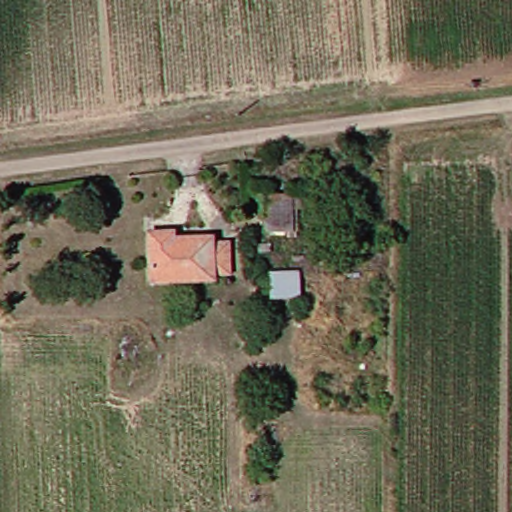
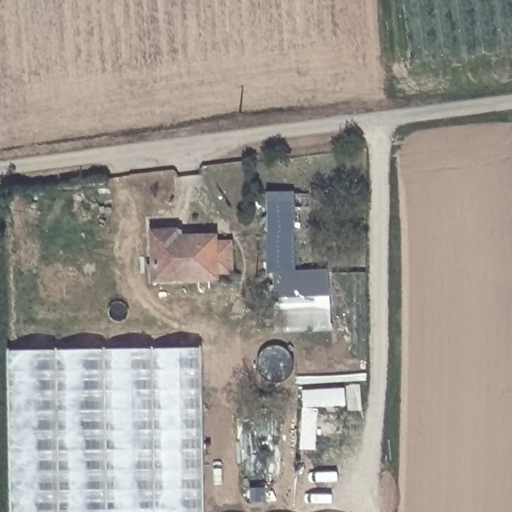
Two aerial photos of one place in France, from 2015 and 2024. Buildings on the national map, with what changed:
unchanged [(511,160),(512,160),(512,169),(511,160)]
unchanged [(269,195),(294,195),(295,232),(269,233),(269,195)]
unchanged [(171,234),(171,240),(210,238),(211,245),(225,244),(226,271),(212,271),(212,277),(148,280),(146,235),(171,234)]
unchanged [(298,293),(269,296),(268,266),(298,265),(298,293)]
new [(201,347),(204,512),(10,512),(7,351),(201,347)]

